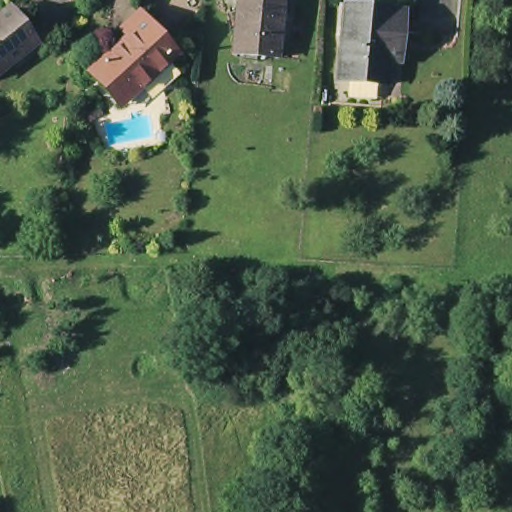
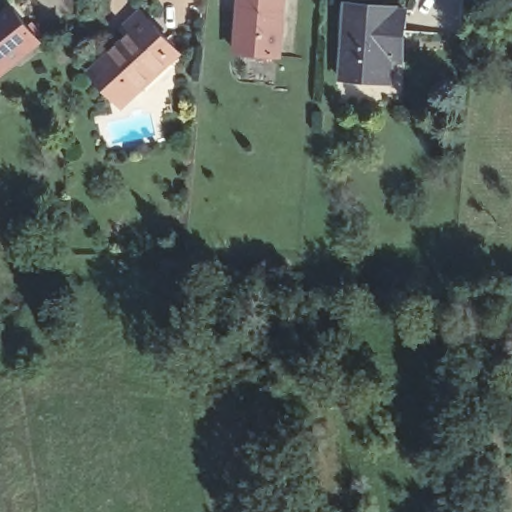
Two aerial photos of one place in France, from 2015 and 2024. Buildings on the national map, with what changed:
unchanged [(278,54),(235,50),(238,0),(282,0),(278,54)]
unchanged [(338,52),(342,4),(391,7),(391,10),(400,11),(397,61),(387,61),(386,81),(343,78),(336,77),(338,52)]
unchanged [(13,7),(37,40),(0,68),(0,17),(13,7)]
unchanged [(89,81),(96,75),(130,45),(123,36),(142,20),(179,62),(133,104),(120,115),(89,81)]

